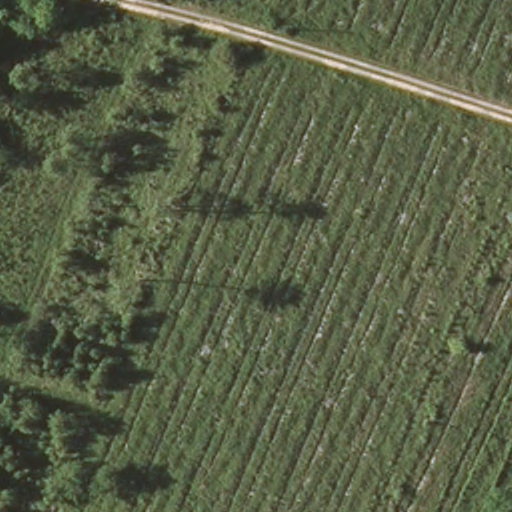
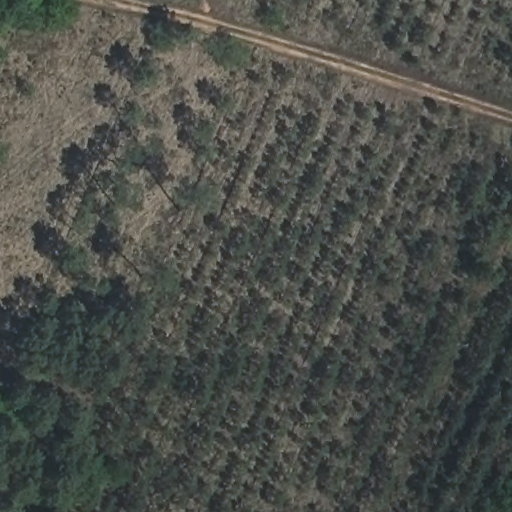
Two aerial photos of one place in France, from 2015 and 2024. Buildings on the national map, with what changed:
[]

